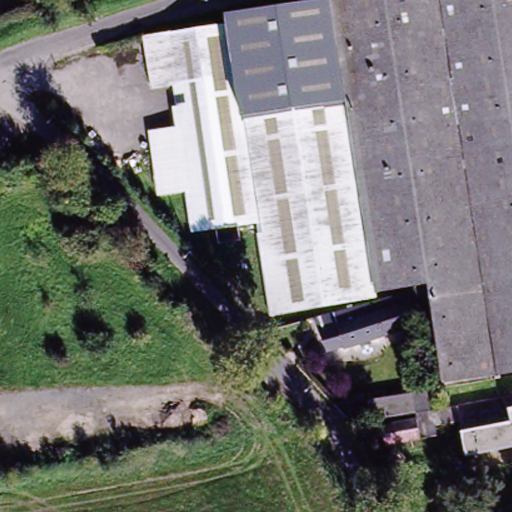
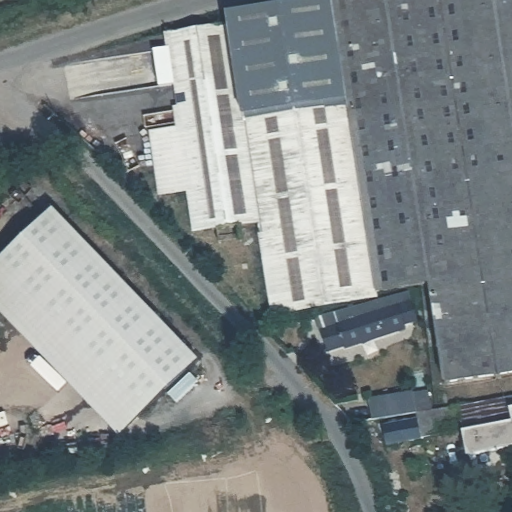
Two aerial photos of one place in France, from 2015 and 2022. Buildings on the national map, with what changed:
unchanged [(439,286),(397,295),(346,1),(351,0),(512,0),(512,376),(452,386),(439,286)]
unchanged [(397,295),(371,300),(320,6),(346,1),(397,295)]
unchanged [(371,300),(291,317),(275,222),(241,30),(239,19),(320,6),(371,300)]
unchanged [(239,246),(236,230),(215,234),(210,205),(189,207),(186,196),(174,199),(163,137),(159,116),(188,112),(185,89),(165,94),(155,46),(241,30),(275,222),(255,226),(258,243),(239,246)]
new [(197,363),(117,438),(0,316),(0,262),(52,212),(197,363)]
unchanged [(317,322),(372,307),(398,300),(398,301),(403,325),(398,326),(391,328),(393,338),(334,352),(333,348),(320,352),(316,334),(320,334),(318,326),(317,322)]
unchanged [(374,411),(416,403),(420,422),(377,429),(374,411)]
unchanged [(469,431),(440,436),(442,447),(390,455),(386,434),(438,425),(437,419),(448,417),(451,417),(466,414),(470,414),(488,411),(504,408),(507,408),(512,406),(512,460),(474,467),(469,431)]

